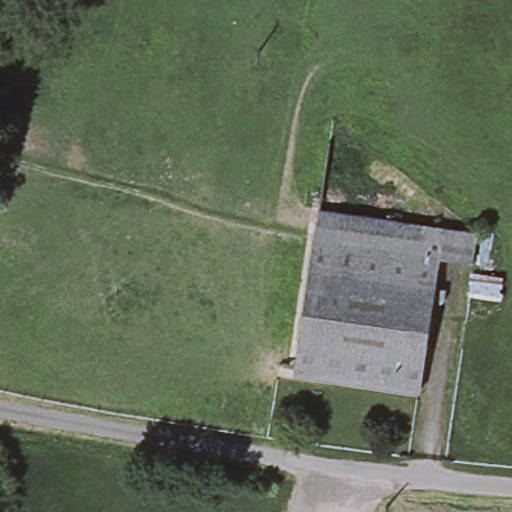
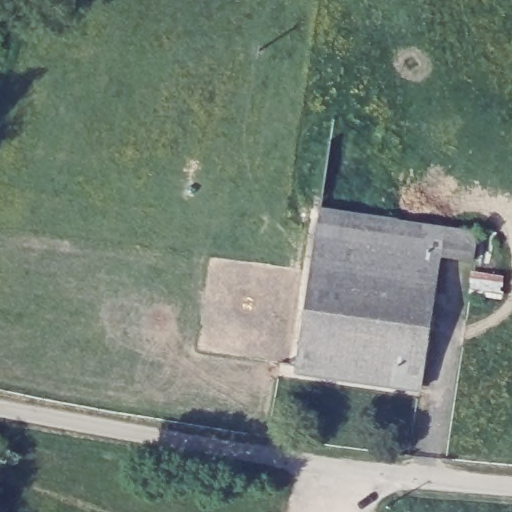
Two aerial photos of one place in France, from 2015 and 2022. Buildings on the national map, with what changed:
unchanged [(477,231),(473,260),(445,255),(440,255),(421,387),(297,369),(320,208),(477,231)]

